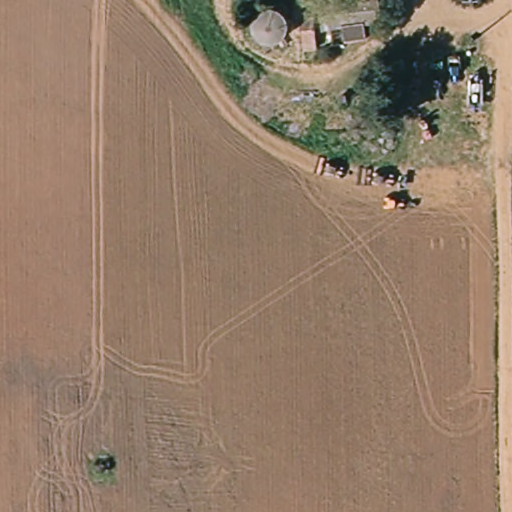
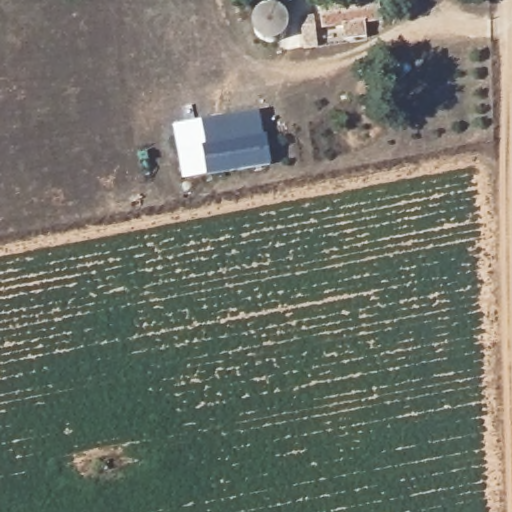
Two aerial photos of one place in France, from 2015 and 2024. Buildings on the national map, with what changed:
unchanged [(373,14),(355,16),(354,29),(337,30),(337,17),(321,18),(320,0),(372,0),(373,14)]
unchanged [(311,4),(313,34),(294,36),(292,7),(311,4)]
new [(182,179),(174,127),(264,111),(271,164),(182,179)]

